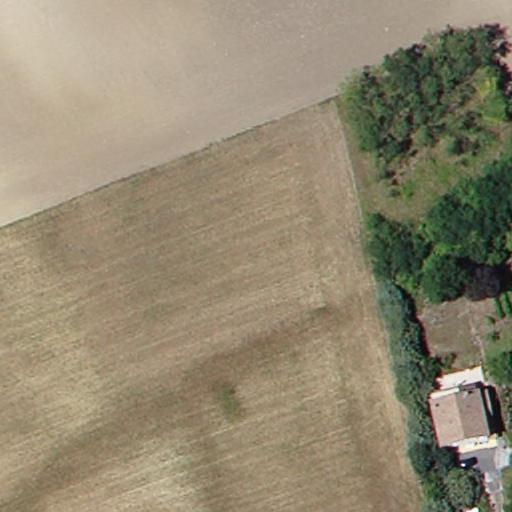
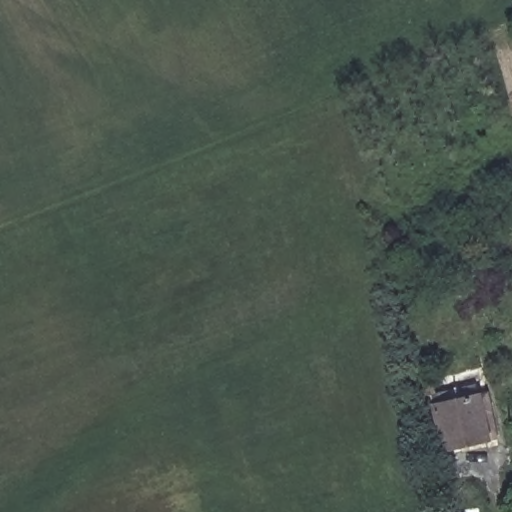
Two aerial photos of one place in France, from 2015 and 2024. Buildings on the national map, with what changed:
unchanged [(442,455),(434,411),(477,398),(485,443),(442,455)]

